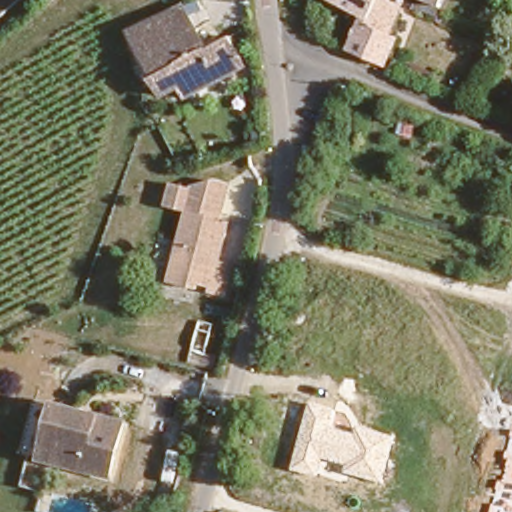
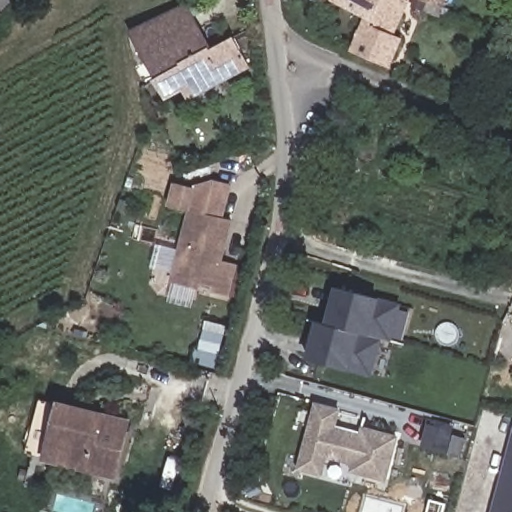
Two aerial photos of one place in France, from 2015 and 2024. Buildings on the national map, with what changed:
unchanged [(129,27),(128,25),(175,0),(186,0),(210,40),(155,71),(154,72),(129,27)]
unchanged [(391,32),(397,35),(384,65),(348,45),(364,12),(342,0),(405,0),(391,32)]
unchanged [(438,10),(437,10),(420,3),(413,0),(441,0),(438,10)]
unchanged [(155,71),(210,40),(234,27),(249,57),(202,85),(193,75),(166,88),(154,72),(155,71)]
unchanged [(190,215),(171,210),(177,186),(196,191),(197,187),(216,180),(230,184),(224,213),(219,212),(219,217),(233,220),(223,261),(238,265),(234,280),(228,284),(226,290),(230,295),(230,296),(214,292),(215,287),(202,284),(200,289),(174,283),(177,270),(160,265),(164,251),(180,255),(190,215)]
new [(352,370),(307,360),(314,321),(324,323),(333,286),(381,298),(402,303),(393,341),(382,339),(373,375),(352,370)]
unchanged [(219,361),(216,373),(192,366),(195,355),(219,361)]
unchanged [(61,398),(47,452),(28,447),(41,393),(61,398)]
unchanged [(130,417),(116,471),(47,452),(61,398),(130,417)]
unchanged [(387,480),(351,470),(353,463),(329,457),(323,478),(299,470),(317,403),(343,410),(339,426),(361,432),(362,426),(401,436),(387,480)]
unchanged [(497,512),(512,461),(512,512),(497,512)]

